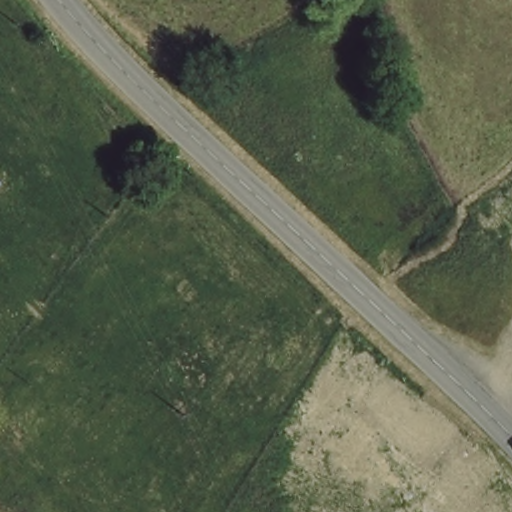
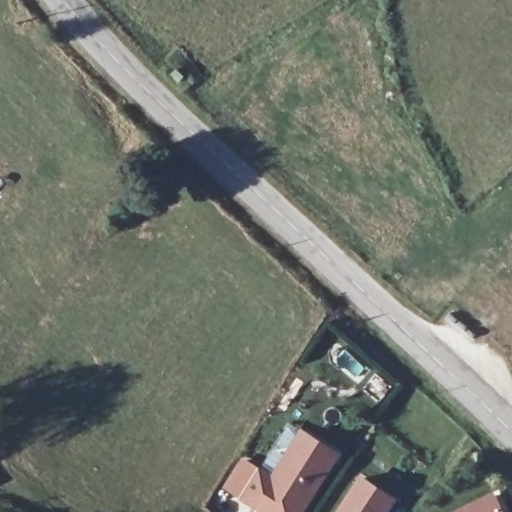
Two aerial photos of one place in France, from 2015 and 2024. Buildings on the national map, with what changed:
new [(257,469),(270,476),(300,428),(341,454),(302,512),(256,512),(237,501),(257,469)]
demolished [(487,446),(512,470),(512,487),(497,512),(442,512),(487,446)]
new [(359,476),(395,499),(387,512),(334,512),(359,476)]
new [(505,512),(453,512),(495,491),(505,512)]

